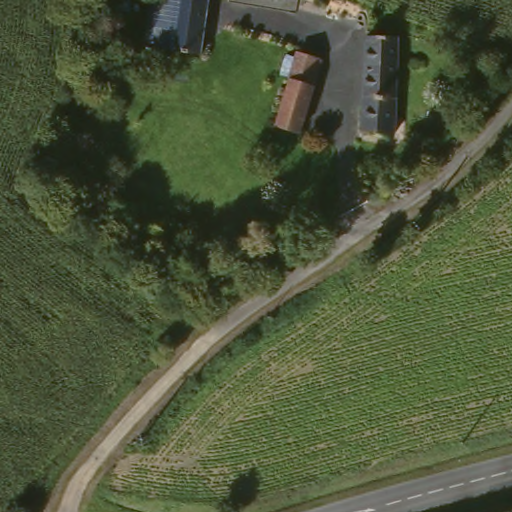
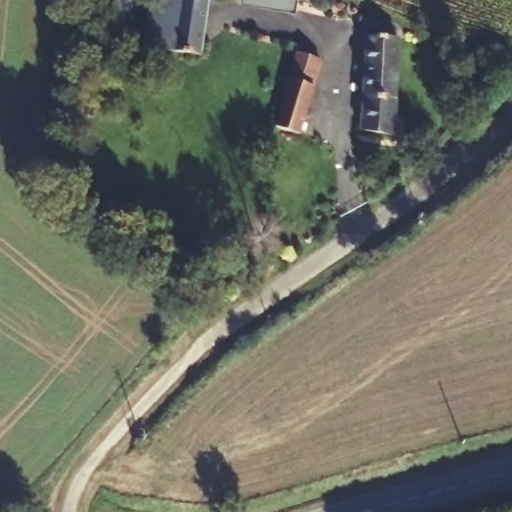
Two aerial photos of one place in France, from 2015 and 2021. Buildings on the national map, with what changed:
unchanged [(204,51),(177,50),(181,0),(210,0),(204,51)]
unchanged [(364,34),(398,31),(392,93),(360,89),(364,34)]
unchanged [(275,124),(287,81),(293,82),(302,54),(322,57),(304,130),(275,124)]
unchanged [(360,89),(392,93),(391,130),(358,127),(360,89)]

